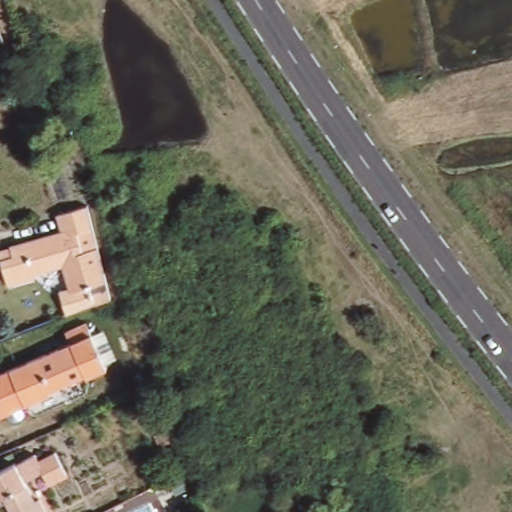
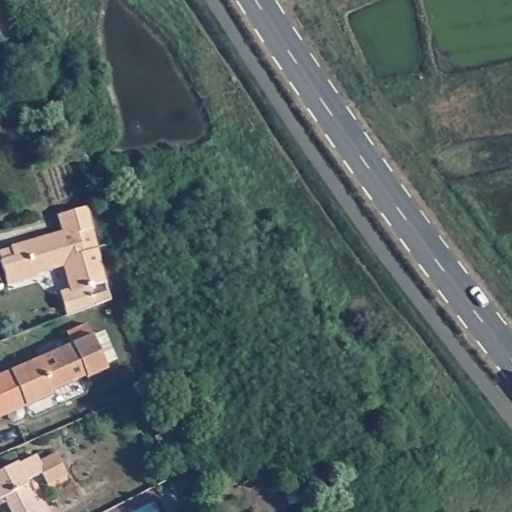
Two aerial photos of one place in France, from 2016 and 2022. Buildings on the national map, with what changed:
unchanged [(67,265),(40,273),(41,276),(12,285),(4,260),(17,256),(14,247),(66,231),(60,214),(90,205),(94,227),(78,232),(84,251),(98,247),(104,282),(86,287),(95,311),(77,318),(71,321),(62,296),(75,291),(67,265)]
unchanged [(74,350),(69,338),(91,331),(109,376),(90,385),(88,381),(56,393),(40,363),(74,350)]
unchanged [(58,398),(0,421),(0,379),(40,363),(56,393),(58,398)]
unchanged [(9,465),(10,467),(29,458),(33,465),(50,457),(61,478),(42,488),(36,477),(15,488),(21,500),(18,501),(24,512),(0,512),(0,469),(9,465)]

